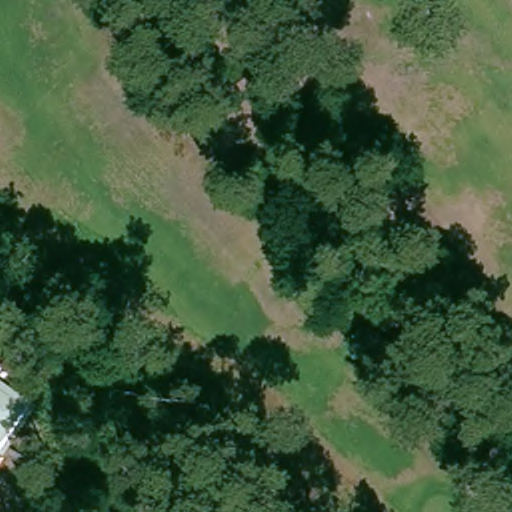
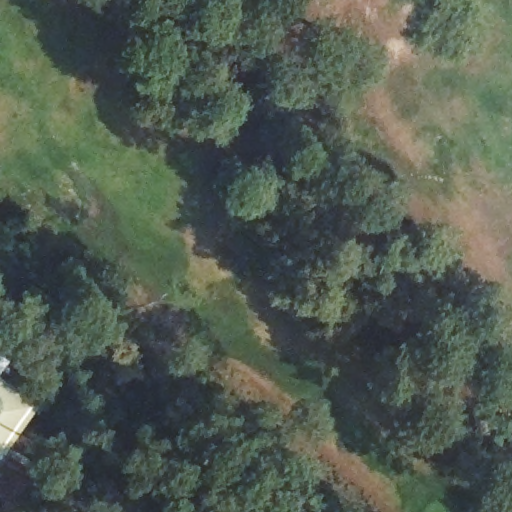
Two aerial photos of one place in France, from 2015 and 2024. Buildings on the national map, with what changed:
unchanged [(0,463),(0,375),(36,400),(0,463)]

